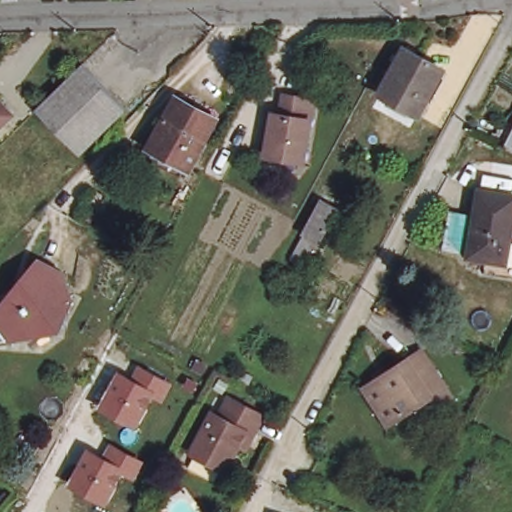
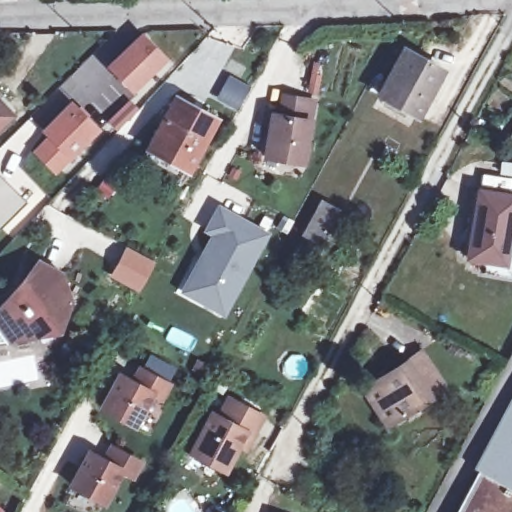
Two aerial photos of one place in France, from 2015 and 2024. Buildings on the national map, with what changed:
new [(145,37),(167,61),(135,92),(121,78),(112,69),(116,65),(145,37)]
unchanged [(441,69),(417,113),(379,92),(403,47),(441,69)]
demolished [(78,66),(122,110),(77,152),(34,109),(78,66)]
unchanged [(287,98),(315,103),(312,122),(305,121),(297,163),(267,158),(275,116),(283,117),(287,98)]
unchanged [(176,103),(216,125),(191,171),(151,150),(176,103)]
new [(69,155),(54,170),(35,150),(50,135),(45,130),(71,104),(96,129),(69,155)]
unchanged [(0,121),(0,107),(7,115),(0,121)]
new [(0,225),(0,175),(26,201),(0,225)]
unchanged [(512,192),(512,253),(511,259),(474,253),(485,187),(512,192)]
unchanged [(343,211),(327,241),(324,239),(318,250),(305,242),(327,202),(343,211)]
new [(224,317),(180,292),(210,235),(203,232),(219,203),(271,232),(224,317)]
unchanged [(17,292),(20,293),(39,259),(62,272),(53,289),(72,300),(62,318),(53,321),(33,336),(11,339),(0,342),(0,306),(2,302),(17,292)]
unchanged [(410,407),(382,424),(361,388),(373,381),(371,376),(379,370),(382,375),(417,353),(445,397),(429,407),(416,415),(410,407)]
unchanged [(117,372),(134,381),(140,367),(174,384),(166,404),(150,399),(136,430),(97,411),(117,372)]
new [(454,512),(477,471),(472,468),(512,395),(512,512),(454,512)]
unchanged [(235,443),(221,468),(186,450),(208,411),(216,416),(227,397),(260,415),(249,435),(242,447),(235,443)]
unchanged [(106,460),(114,444),(147,462),(137,482),(120,476),(104,507),(66,490),(87,450),(106,460)]

